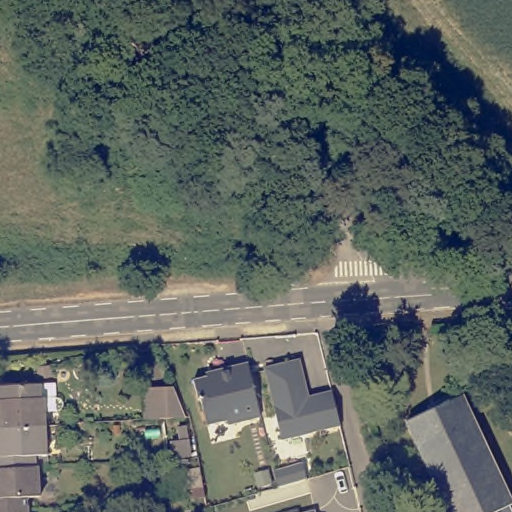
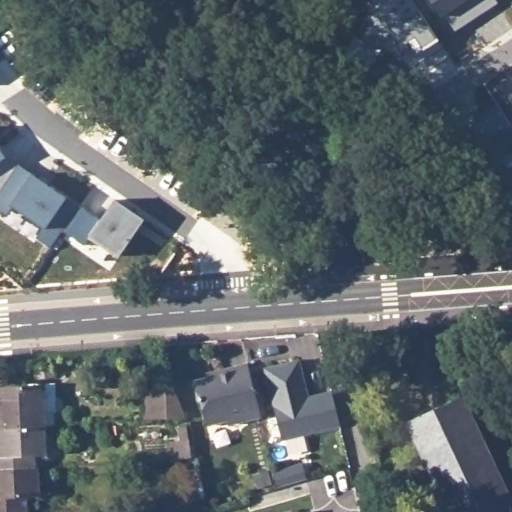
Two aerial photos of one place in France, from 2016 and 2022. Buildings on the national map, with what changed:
new [(453,32),(442,15),(432,0),(495,0),(498,3),(453,32)]
new [(509,96),(512,94),(512,101),(509,96)]
new [(7,160),(6,160),(19,168),(3,193),(0,191),(0,149),(1,150),(7,160)]
new [(19,168),(21,166),(83,208),(65,232),(53,249),(39,239),(46,229),(15,208),(9,216),(0,210),(0,197),(3,193),(19,168)]
new [(83,208),(103,222),(118,201),(148,222),(121,258),(93,238),(86,247),(65,232),(83,208)]
unchanged [(341,424),(283,438),(266,365),(301,357),(310,394),(333,389),(341,424)]
unchanged [(355,359),(365,357),(368,368),(358,370),(355,359)]
unchanged [(258,394),(264,420),(231,428),(230,423),(210,428),(204,403),(201,401),(197,383),(220,377),(219,374),(252,366),(258,394)]
unchanged [(54,376),(54,392),(61,394),(61,402),(56,405),(44,405),(45,415),(0,417),(0,378),(38,377),(54,376)]
unchanged [(151,389),(174,388),(185,419),(153,420),(151,389)]
unchanged [(409,425),(465,399),(512,500),(512,507),(511,507),(512,511),(512,512),(449,512),(409,425)]
unchanged [(46,457),(37,457),(0,459),(0,417),(45,415),(46,457)]
unchanged [(26,488),(26,500),(0,501),(0,459),(37,457),(39,487),(26,488)]
unchanged [(305,466),(309,482),(280,490),(276,473),(305,466)]
unchanged [(27,512),(0,512),(0,501),(26,500),(27,512)]
unchanged [(314,507),(315,512),(298,512),(314,507)]

